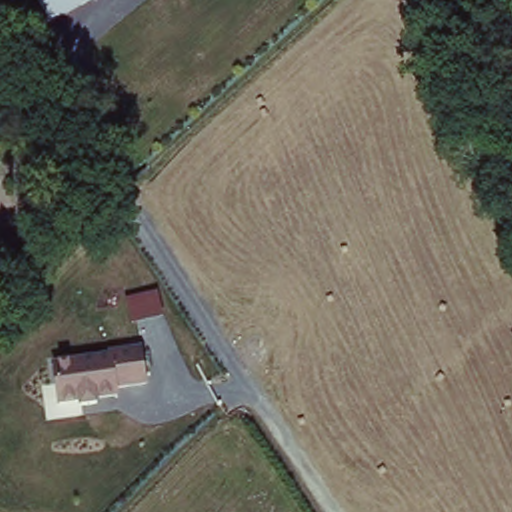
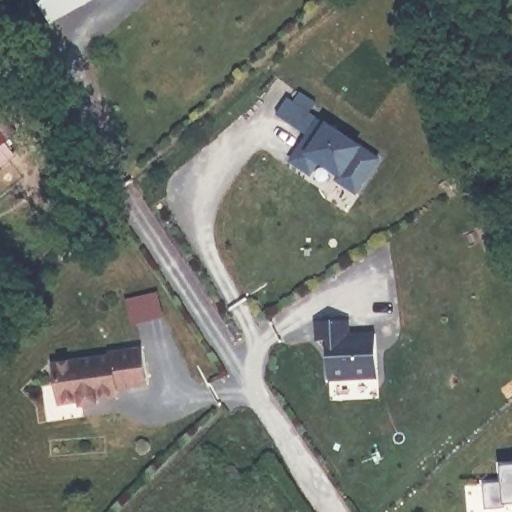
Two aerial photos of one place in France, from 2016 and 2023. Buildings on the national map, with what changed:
unchanged [(36,0),(94,0),(47,22),(36,0)]
new [(308,137),(278,117),(289,100),(295,104),(302,94),(318,105),(312,115),(381,160),(357,197),(337,186),(340,182),(317,169),(311,180),(288,165),(297,153),(308,137)]
demolished [(9,135),(16,142),(0,154),(0,115),(14,129),(9,135)]
new [(0,138),(14,157),(0,167),(0,138)]
unchanged [(131,325),(125,300),(159,292),(165,317),(131,325)]
new [(317,322),(350,322),(350,339),(357,339),(357,336),(377,336),(378,380),(350,381),(350,378),(330,378),(328,341),(317,342),(317,322)]
unchanged [(119,391),(120,397),(100,401),(101,405),(81,408),(80,404),(61,407),(54,363),(108,356),(107,352),(141,347),(149,387),(119,391)]
new [(503,483),(502,469),(512,468),(512,508),(504,508),(504,511),(487,512),(486,485),(503,483)]

